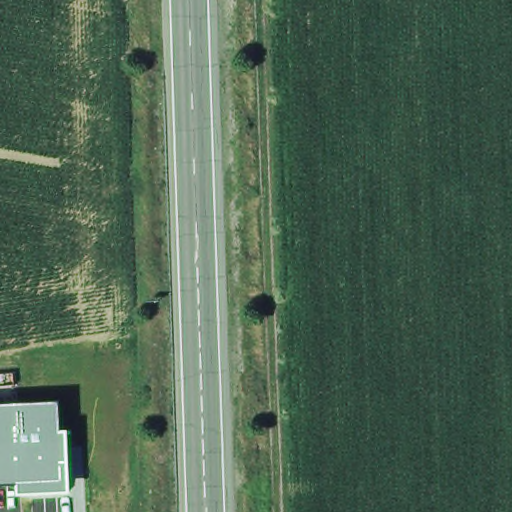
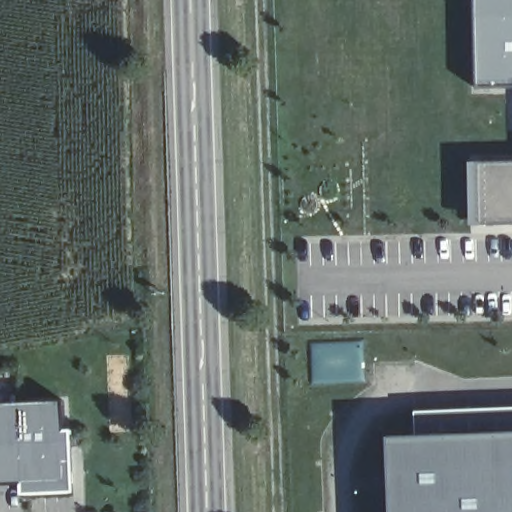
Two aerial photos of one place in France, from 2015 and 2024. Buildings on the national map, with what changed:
new [(477,88),(475,0),(512,0),(512,87),(477,88)]
new [(470,225),(469,164),(512,164),(512,225),(470,225)]
new [(356,347),(359,381),(319,383),(316,344),(344,342),(344,348),(356,347)]
unchanged [(20,484),(0,485),(0,404),(63,402),(64,430),(70,431),(74,494),(20,496),(20,484)]
new [(389,438),(512,432),(512,512),(392,512),(389,438)]

